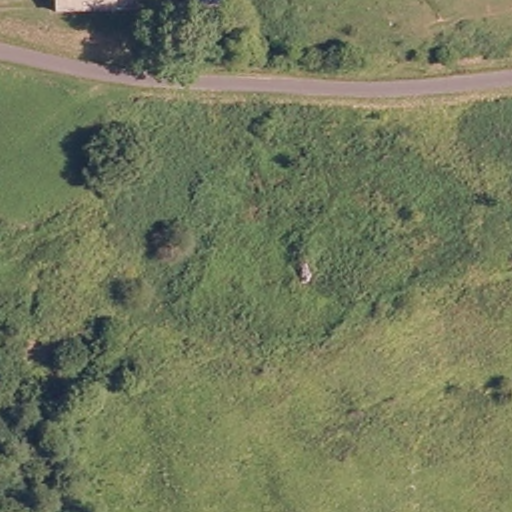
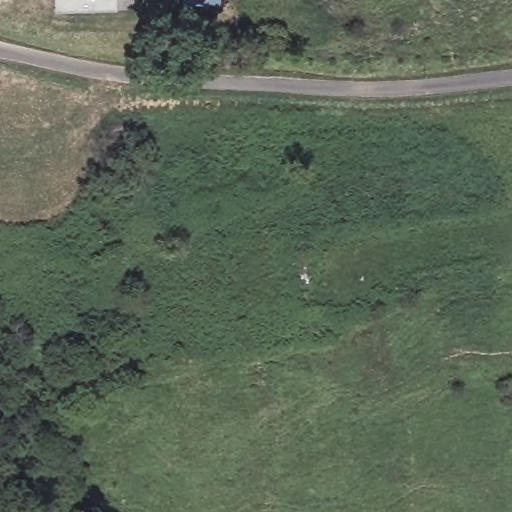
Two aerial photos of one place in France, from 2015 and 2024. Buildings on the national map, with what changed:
unchanged [(141,7),(59,12),(58,0),(140,0),(141,7)]

